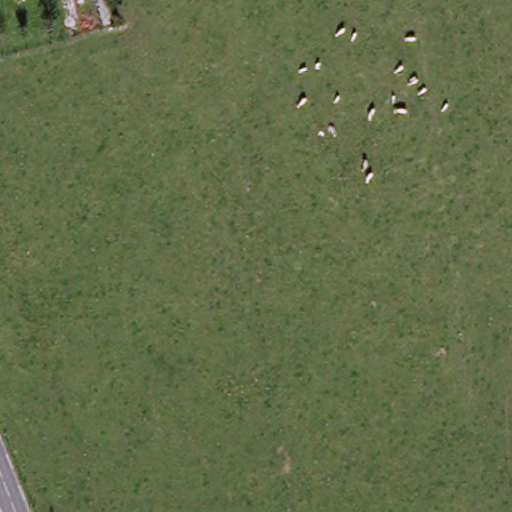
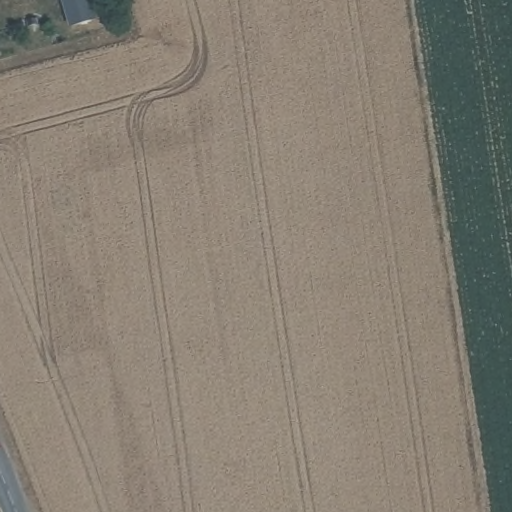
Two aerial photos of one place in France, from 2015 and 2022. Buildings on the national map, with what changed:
new [(98,19),(71,27),(63,0),(92,0),(98,19)]

